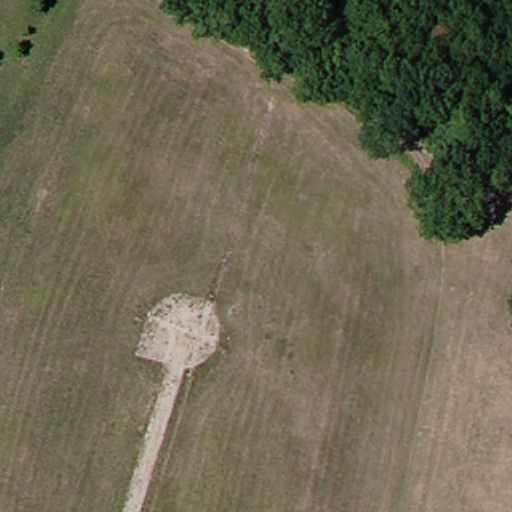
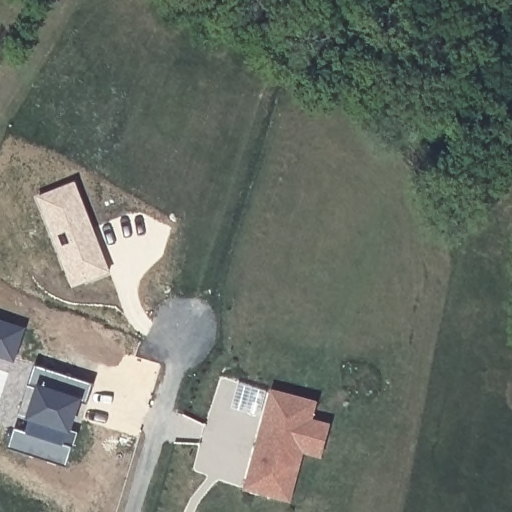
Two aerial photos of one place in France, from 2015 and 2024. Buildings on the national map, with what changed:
new [(37,197),(76,183),(111,274),(72,288),(37,197)]
new [(27,329),(16,364),(0,358),(0,320),(27,329)]
new [(15,429),(25,433),(28,420),(19,417),(36,367),(94,386),(87,404),(81,402),(72,431),(77,434),(67,468),(10,449),(15,429)]
new [(277,392),(316,404),(313,413),(311,421),(330,426),(321,455),(302,449),(288,495),(249,483),(275,397),(277,392)]

